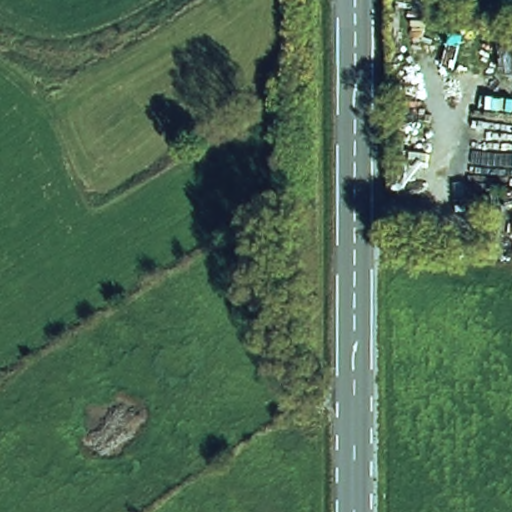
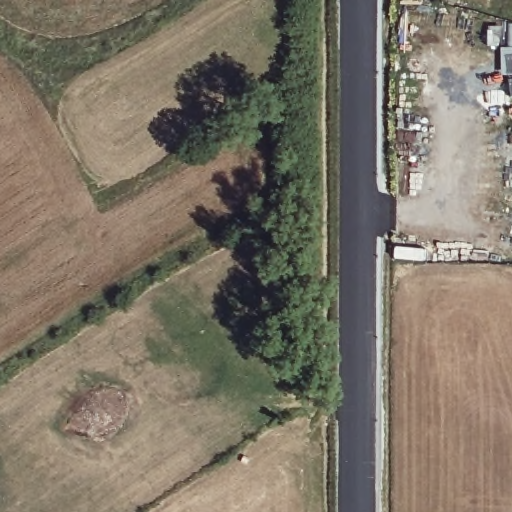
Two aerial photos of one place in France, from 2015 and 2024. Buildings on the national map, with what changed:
unchanged [(497,51),(512,50),(512,70),(498,74),(497,51)]

